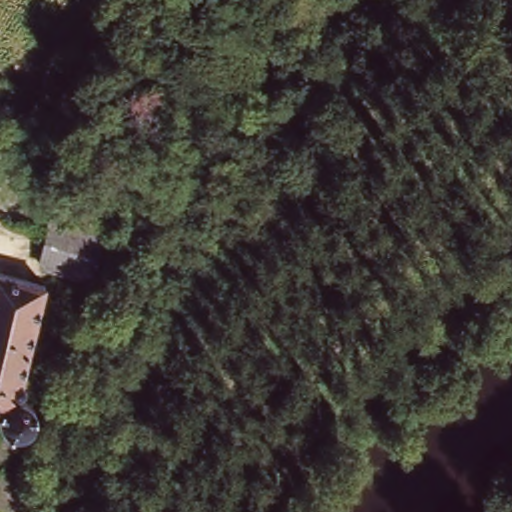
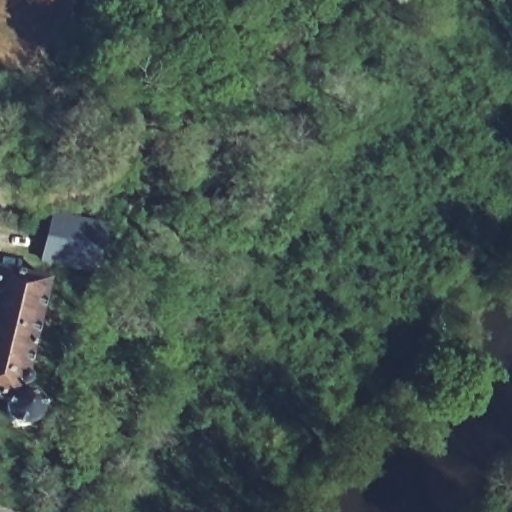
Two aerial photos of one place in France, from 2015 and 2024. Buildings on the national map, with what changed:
unchanged [(102,225),(93,274),(44,265),(52,217),(102,225)]
unchanged [(0,400),(0,266),(39,273),(19,384),(29,385),(38,392),(41,401),(40,412),(33,421),(25,425),(13,423),(5,417),(1,408),(2,401),(0,400)]

